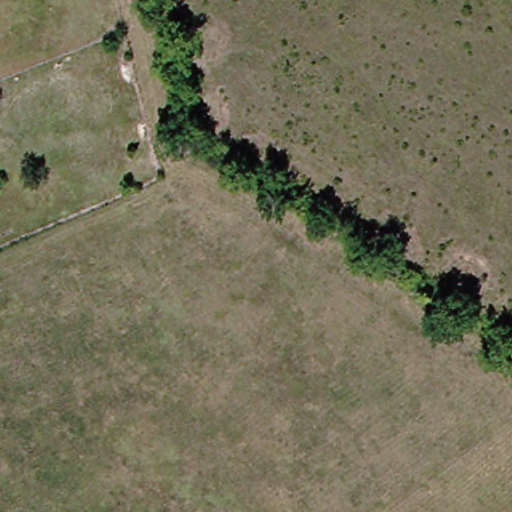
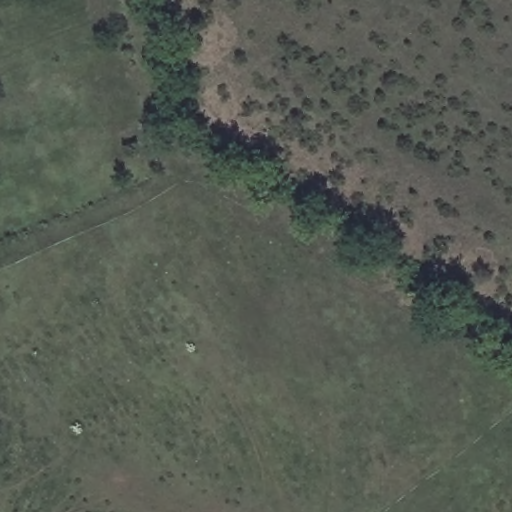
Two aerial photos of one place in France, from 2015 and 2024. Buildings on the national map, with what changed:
[]

